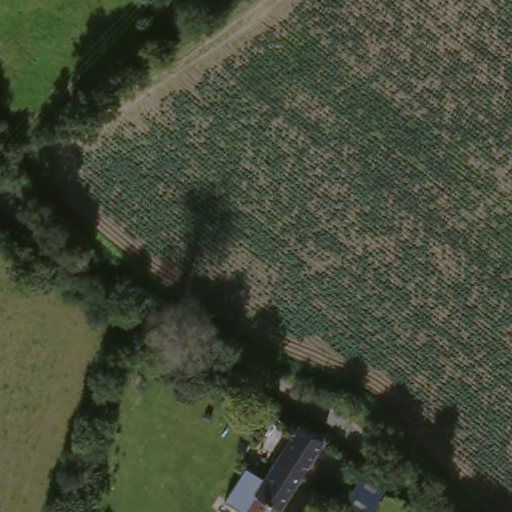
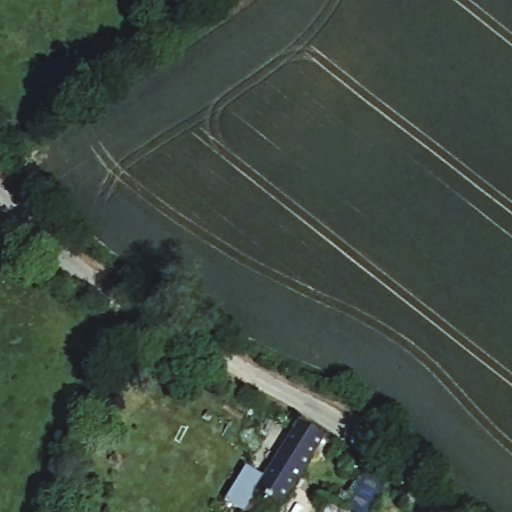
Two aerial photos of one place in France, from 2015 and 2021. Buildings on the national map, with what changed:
unchanged [(227,512),(224,511),(249,467),(261,476),(305,415),(329,431),(272,512),(227,512)]
unchanged [(378,512),(372,507),(369,512),(354,512),(332,496),(341,485),(351,492),(376,461),(403,481),(378,512)]

